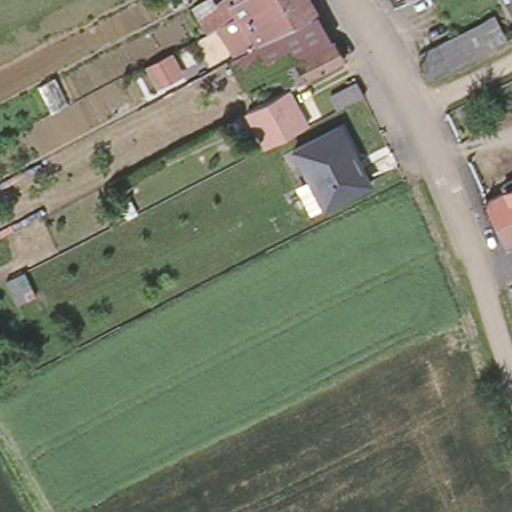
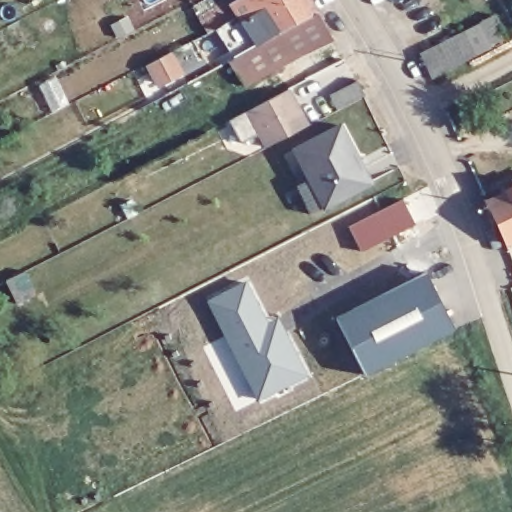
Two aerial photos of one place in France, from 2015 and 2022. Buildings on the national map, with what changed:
unchanged [(215,0),(308,0),(316,14),(265,41),(266,42),(257,47),(237,16),(207,35),(195,12),(215,0)]
unchanged [(332,42),(282,68),(266,42),(265,41),(316,14),(332,42)]
unchanged [(445,40),(470,27),(482,52),(457,64),(437,75),(425,50),(445,40)]
unchanged [(282,68),(332,42),(344,62),(295,88),(280,68),(282,68)]
unchanged [(185,75),(156,91),(144,66),(173,50),(185,75)]
unchanged [(365,96),(337,109),(330,95),(323,81),(348,69),(352,67),(358,82),(365,96)]
unchanged [(305,127),(263,150),(245,114),(256,109),(287,92),(305,127)]
unchanged [(299,195),(315,186),(298,154),(345,129),(373,185),(327,209),(311,217),(299,195)]
unchanged [(498,191),(497,186),(512,178),(512,233),(499,240),(478,200),(498,191)]
new [(403,199),(416,225),(362,252),(349,227),(403,199)]
new [(428,275),(456,331),(365,377),(335,318),(428,275)]
unchanged [(10,309),(0,289),(0,285),(17,277),(29,300),(10,309)]
new [(268,324),(278,318),(308,378),(257,403),(207,302),(247,281),(268,324)]

